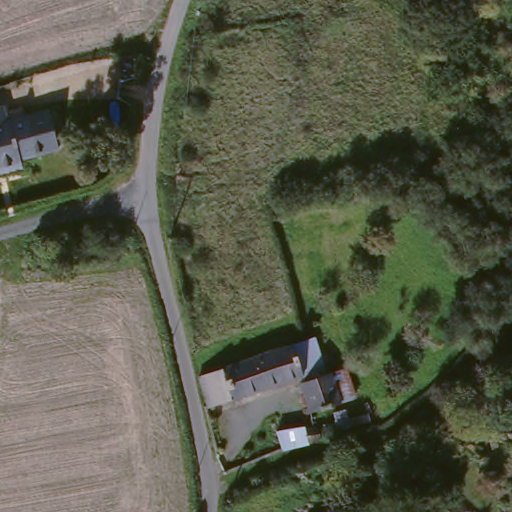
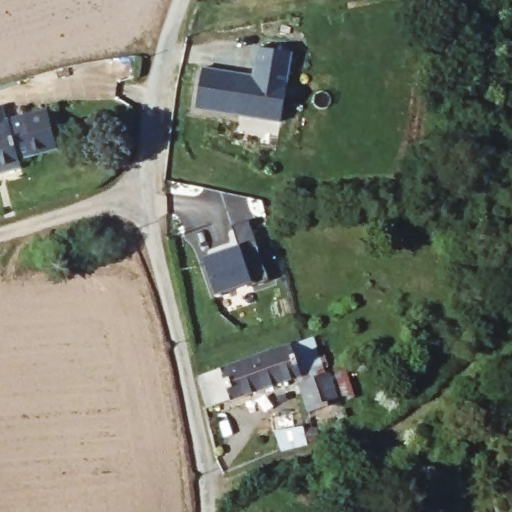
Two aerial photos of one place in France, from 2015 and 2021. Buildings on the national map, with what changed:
new [(202,69),(253,76),(257,47),(291,52),(279,125),(195,109),(202,69)]
unchanged [(6,107),(10,122),(31,117),(53,111),(63,150),(41,156),(25,160),(26,163),(0,169),(0,108),(6,107)]
new [(238,245),(231,224),(248,217),(269,278),(252,285),(250,281),(215,292),(203,257),(238,245)]
unchanged [(256,354),(308,336),(309,336),(319,333),(326,352),(330,351),(332,356),(327,358),(329,365),(331,369),(335,367),(336,369),(349,364),(350,364),(359,392),(345,397),(346,398),(314,407),(305,378),(309,377),(306,371),(213,404),(203,372),(256,354)]
unchanged [(274,433),(316,426),(319,438),(281,450),(274,433)]

